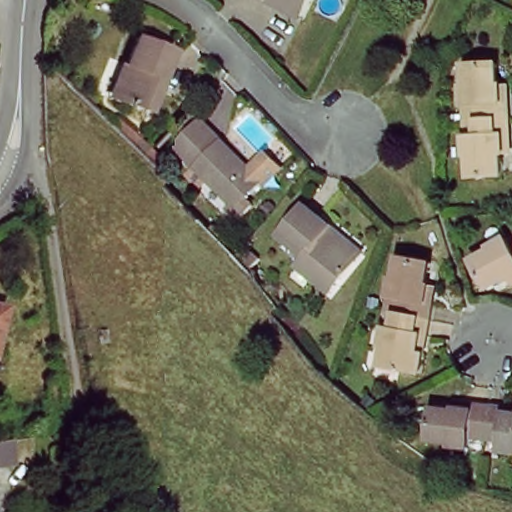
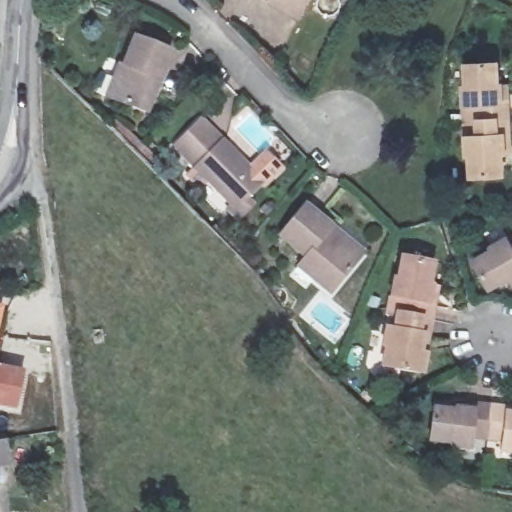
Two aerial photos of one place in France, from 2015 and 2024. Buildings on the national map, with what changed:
unchanged [(299,19),(261,0),(309,0),(299,19)]
unchanged [(106,96),(115,71),(118,72),(129,43),(167,55),(140,125),(130,121),(110,115),(101,112),(106,96)]
unchanged [(490,81),(498,81),(500,117),(462,117),(462,111),(447,112),(447,90),(459,89),(457,62),(487,60),(490,81)]
unchanged [(454,140),(466,140),(465,121),(500,120),(505,182),(457,184),(454,140)]
unchanged [(278,169),(264,183),(237,210),(234,208),(211,186),(173,150),(202,124),(252,171),(267,158),(278,169)]
unchanged [(294,269),(302,258),(277,238),(298,209),(324,229),(326,226),(359,253),(350,265),(328,293),(294,269)]
unchanged [(499,281),(482,290),(468,265),(485,255),(482,247),(510,230),(512,235),(512,291),(507,295),(499,281)]
unchanged [(403,272),(437,282),(430,302),(436,305),(432,320),(393,308),(403,272)]
unchanged [(432,320),(427,337),(420,336),(414,362),(381,352),(393,308),(432,320)]
new [(1,367),(26,371),(15,410),(0,407),(0,367),(1,367)]
unchanged [(485,436),(484,445),(467,443),(465,453),(447,451),(446,446),(428,443),(430,412),(456,413),(457,408),(487,411),(485,436)]
unchanged [(512,462),(500,461),(502,447),(484,445),(485,436),(487,411),(512,413),(512,462)]
unchanged [(8,441),(12,466),(0,468),(0,442),(8,441)]

